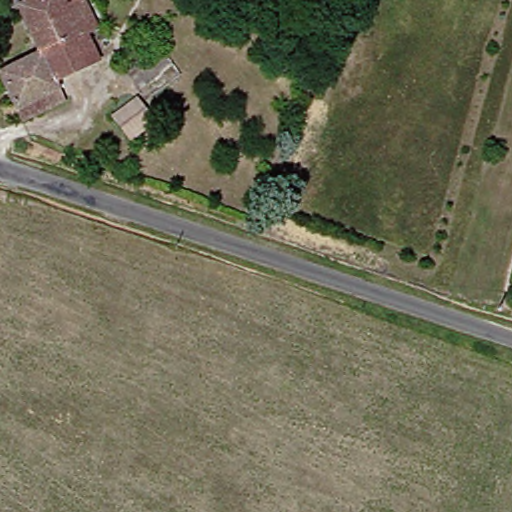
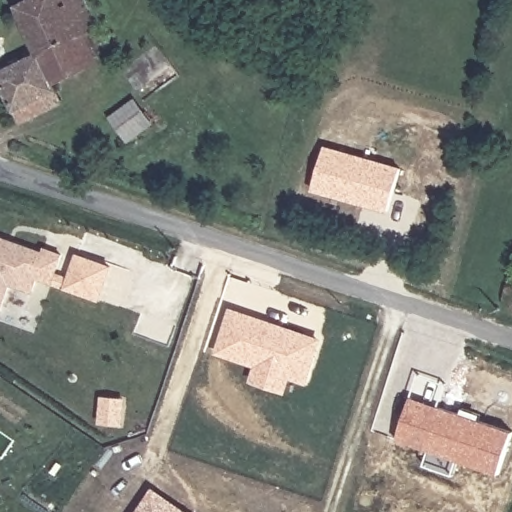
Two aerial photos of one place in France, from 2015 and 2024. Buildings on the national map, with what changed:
unchanged [(7,111),(0,96),(0,70),(28,56),(7,10),(22,2),(22,0),(76,0),(91,30),(79,37),(37,56),(47,79),(52,90),(29,101),(35,112),(12,122),(7,111)]
unchanged [(90,59),(47,79),(37,56),(79,37),(90,59)]
new [(391,211),(313,189),(327,144),(403,165),(391,211)]
new [(35,282),(30,296),(9,289),(0,316),(0,239),(40,253),(41,249),(62,256),(51,287),(35,282)]
new [(102,301),(52,282),(56,271),(70,275),(77,252),(113,265),(102,301)]
new [(310,385),(293,378),(288,393),(250,382),(255,366),(215,353),(232,306),(326,338),(310,385)]
new [(500,473),(397,440),(412,394),(512,430),(512,436),(500,473)]
new [(193,512),(136,512),(155,485),(193,512)]

